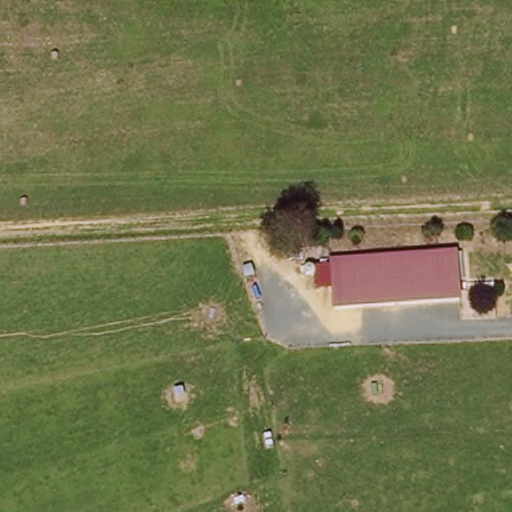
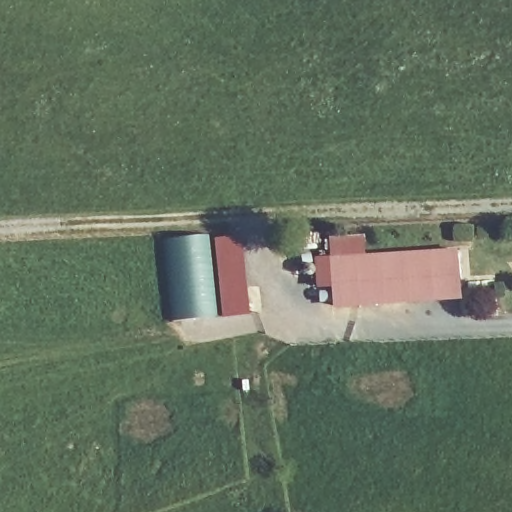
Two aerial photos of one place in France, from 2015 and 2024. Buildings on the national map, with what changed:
new [(250,315),(172,321),(166,240),(241,234),(250,315)]
unchanged [(460,293),(327,303),(327,288),(314,288),(310,261),(327,257),(325,237),(362,236),(362,257),(457,246),(460,293)]

